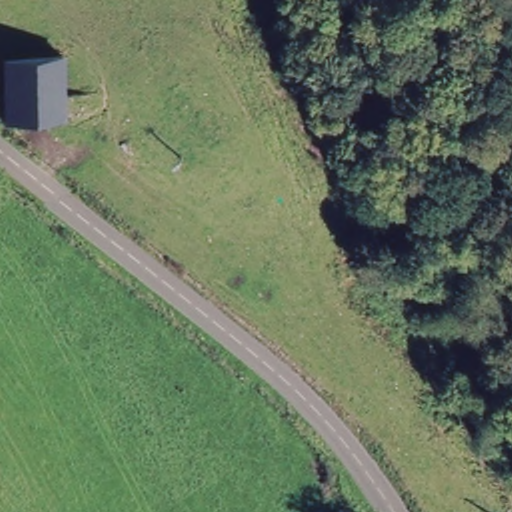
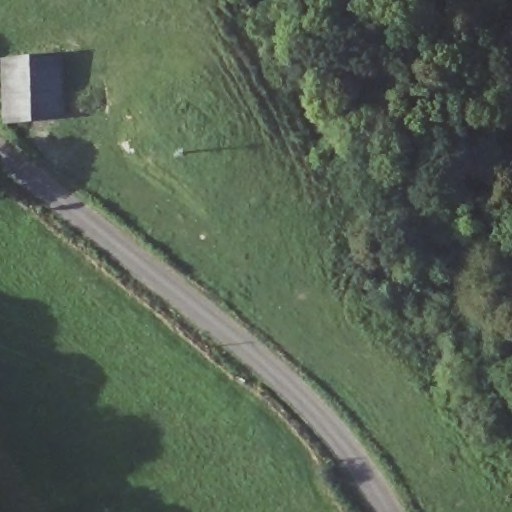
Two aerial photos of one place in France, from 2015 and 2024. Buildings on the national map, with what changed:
unchanged [(65,120),(8,127),(7,119),(1,56),(60,51),(60,57),(65,120)]

